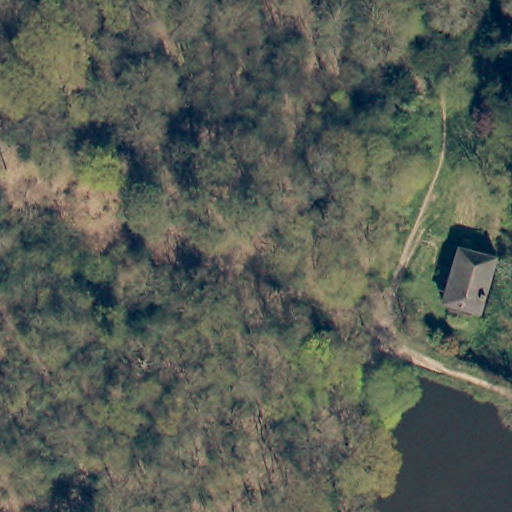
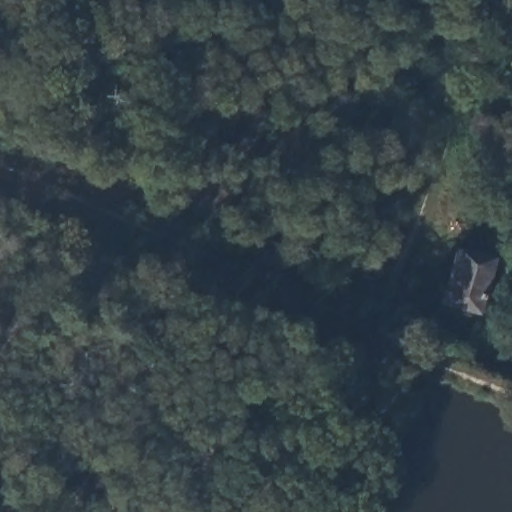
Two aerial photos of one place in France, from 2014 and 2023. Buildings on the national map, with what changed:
unchanged [(442,306),(459,246),(493,256),(492,258),(475,316),(442,306)]

